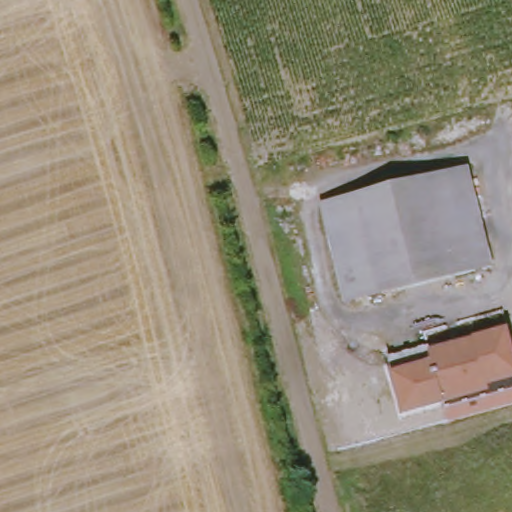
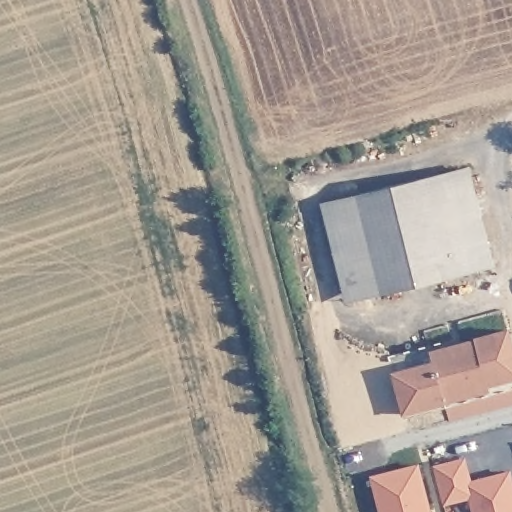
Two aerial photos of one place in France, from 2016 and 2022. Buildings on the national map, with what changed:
unchanged [(472,168),(497,272),(382,298),(359,197),(472,168)]
unchanged [(382,298),(345,306),(322,207),(359,197),(382,298)]
unchanged [(444,407),(403,417),(388,360),(428,349),(431,360),(476,351),(475,345),(508,337),(512,352),(512,396),(490,402),(445,412),(444,407)]
new [(434,466),(465,458),(471,480),(510,470),(512,478),(512,512),(473,512),(469,498),(445,505),(434,466)]
new [(383,512),(375,479),(421,467),(432,512),(383,512)]

